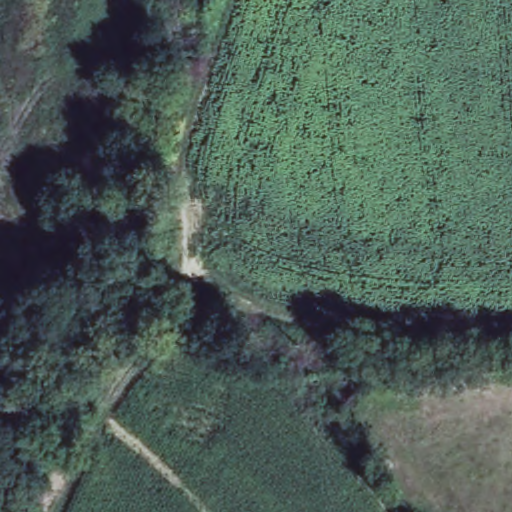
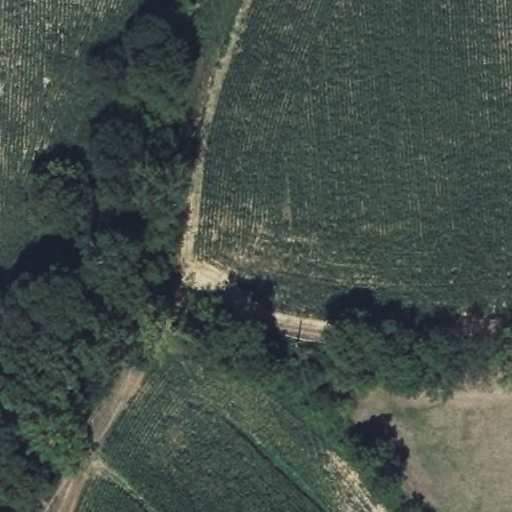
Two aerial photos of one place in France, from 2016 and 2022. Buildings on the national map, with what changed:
[]

